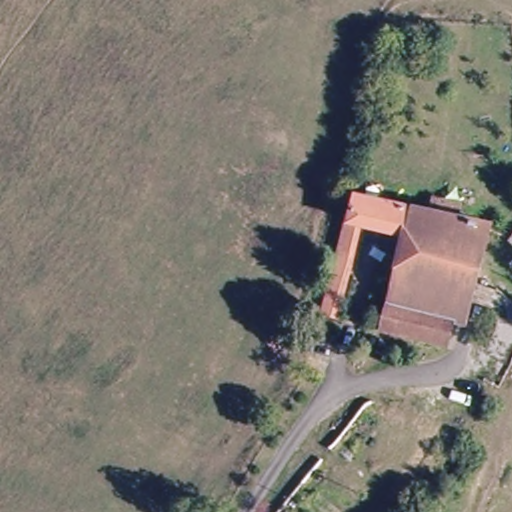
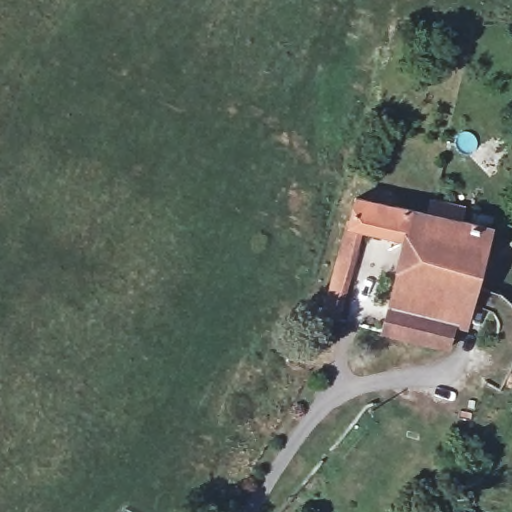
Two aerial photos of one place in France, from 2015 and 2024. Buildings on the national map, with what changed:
unchanged [(331,266),(352,191),(480,223),(454,326),(450,324),(443,346),(377,328),(400,232),(359,221),(346,271),(333,319),(328,318),(319,315),(331,266)]

